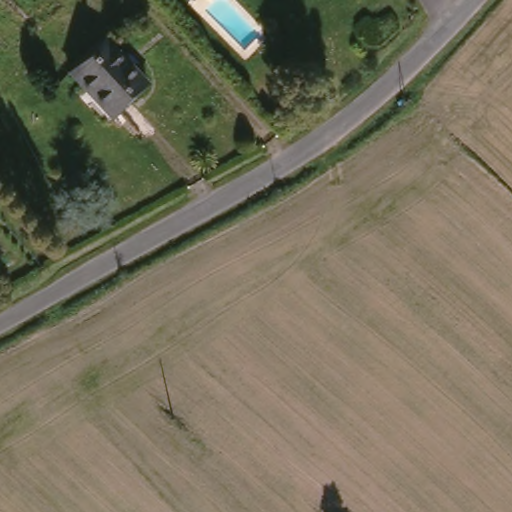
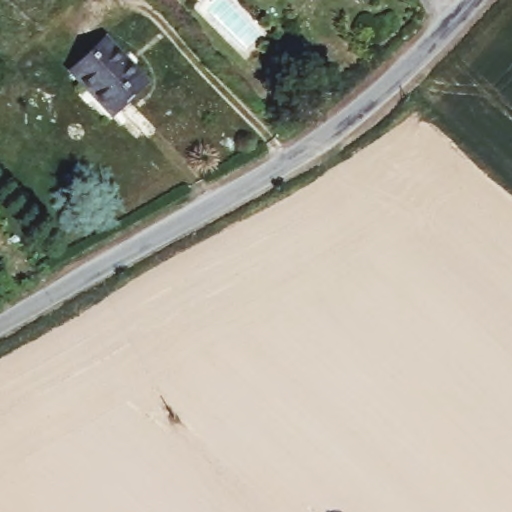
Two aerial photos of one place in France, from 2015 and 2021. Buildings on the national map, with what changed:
unchanged [(119,110),(93,87),(84,95),(65,78),(100,42),(145,86),(119,110)]

